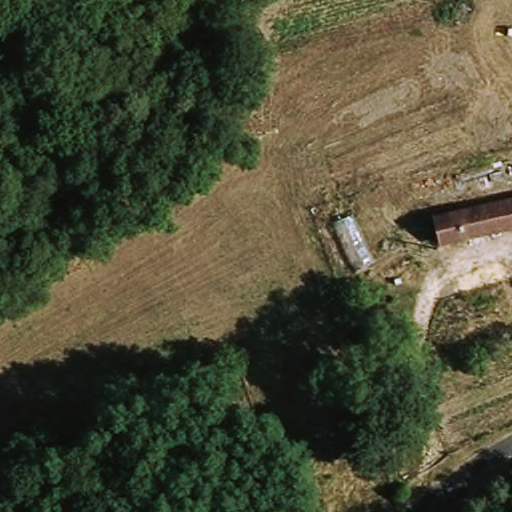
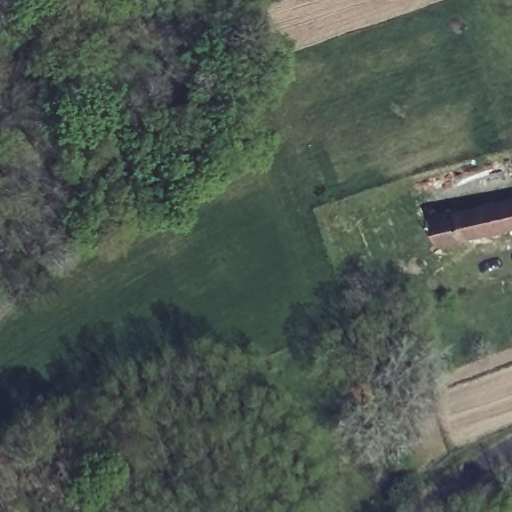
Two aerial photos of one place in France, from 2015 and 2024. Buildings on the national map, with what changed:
unchanged [(512,226),(442,242),(435,212),(512,195),(512,226)]
unchanged [(362,393),(347,400),(338,378),(354,371),(362,393)]

